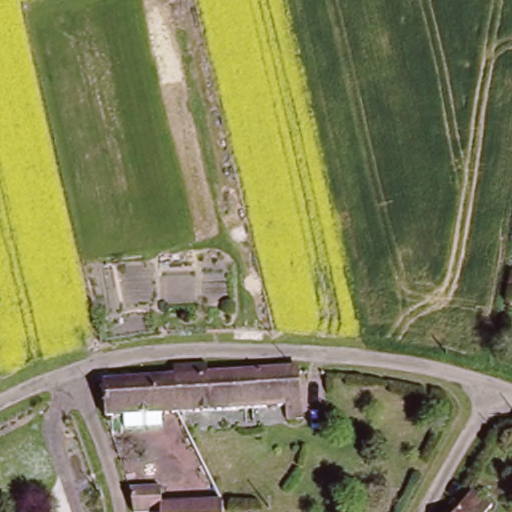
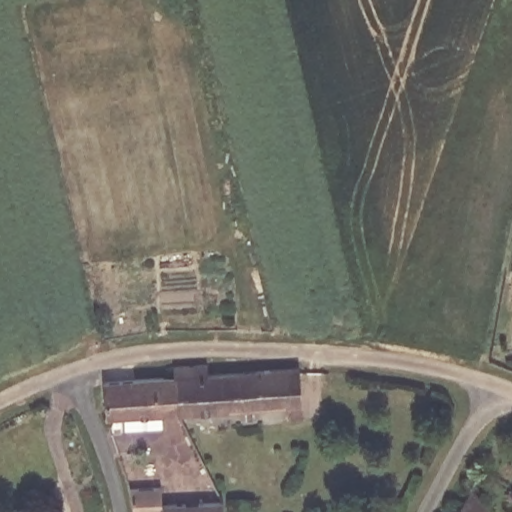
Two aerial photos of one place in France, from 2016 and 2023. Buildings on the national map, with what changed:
unchanged [(299,376),(300,425),(284,426),(282,412),(183,416),(181,371),(209,369),(210,377),(299,376)]
unchanged [(128,429),(127,418),(109,419),(107,384),(140,382),(140,373),(181,371),(183,416),(162,417),(162,427),(128,429)]
unchanged [(497,507),(493,512),(462,512),(477,492),(497,507)]
unchanged [(222,512),(135,512),(135,500),(156,498),(157,500),(157,506),(222,504),(222,512)]

